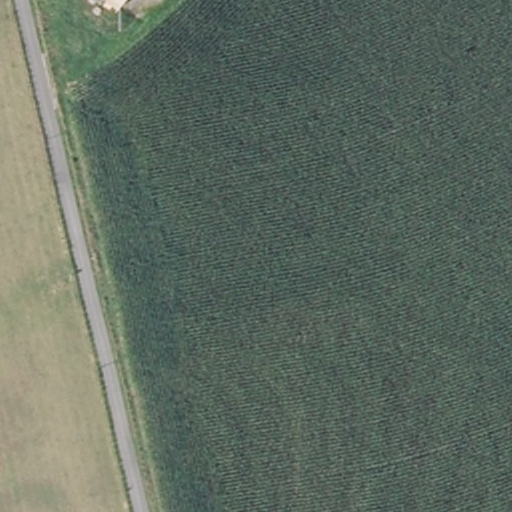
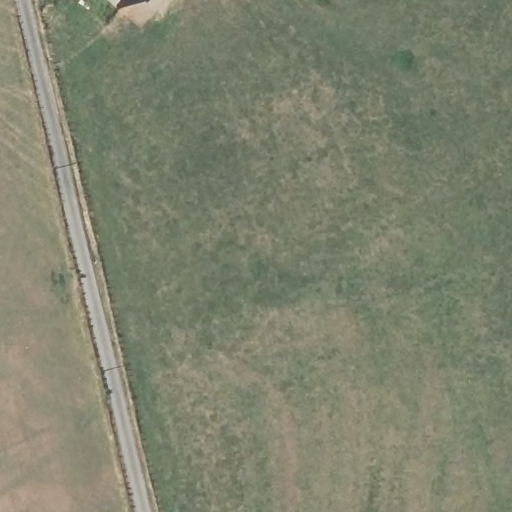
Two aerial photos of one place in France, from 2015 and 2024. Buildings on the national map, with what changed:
unchanged [(111,0),(129,0),(121,9),(111,0)]

